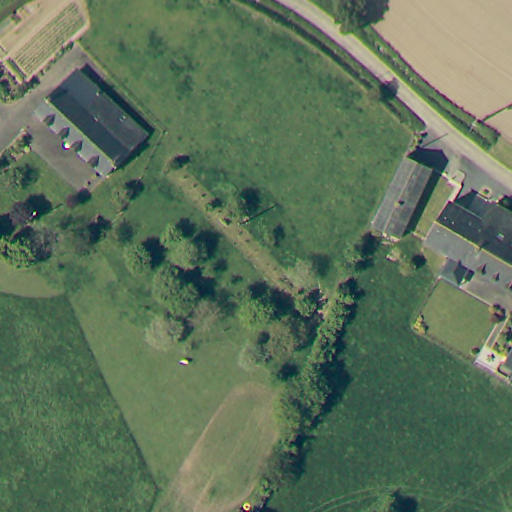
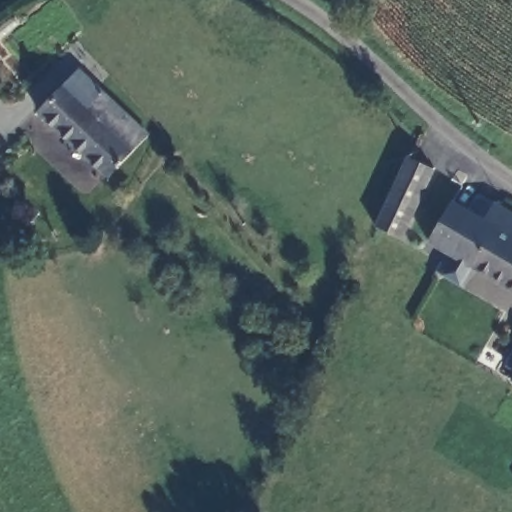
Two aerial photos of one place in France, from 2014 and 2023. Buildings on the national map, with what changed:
unchanged [(106,166),(39,102),(77,62),(148,126),(106,166)]
unchanged [(407,159),(435,172),(403,242),(375,227),(407,159)]
unchanged [(512,221),(512,296),(428,247),(452,206),(472,217),(480,203),(512,221)]
unchanged [(512,364),(512,398),(496,390),(512,364)]

